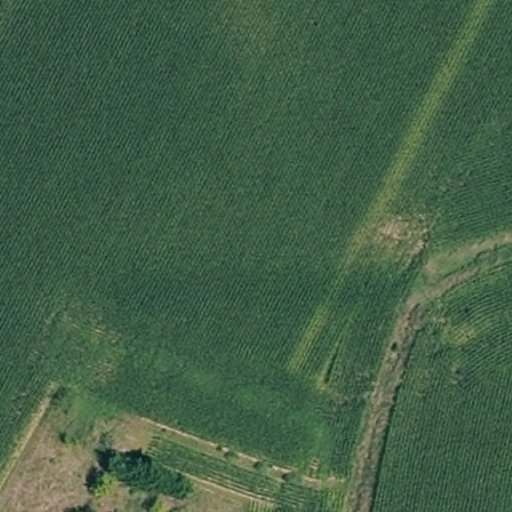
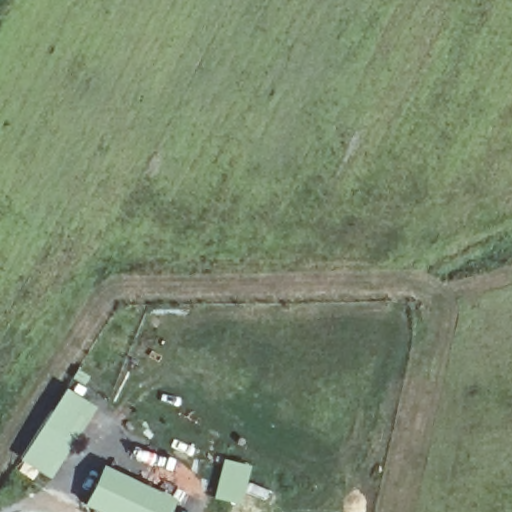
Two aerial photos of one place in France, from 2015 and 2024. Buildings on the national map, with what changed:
new [(65,387),(93,407),(49,480),(38,472),(31,480),(15,469),(65,387)]
new [(224,459),(251,466),(240,504),(213,497),(224,459)]
new [(172,499),(164,512),(98,512),(83,505),(101,464),(172,499)]
demolished [(86,512),(91,469),(115,471),(114,488),(184,495),(182,512),(86,512)]

